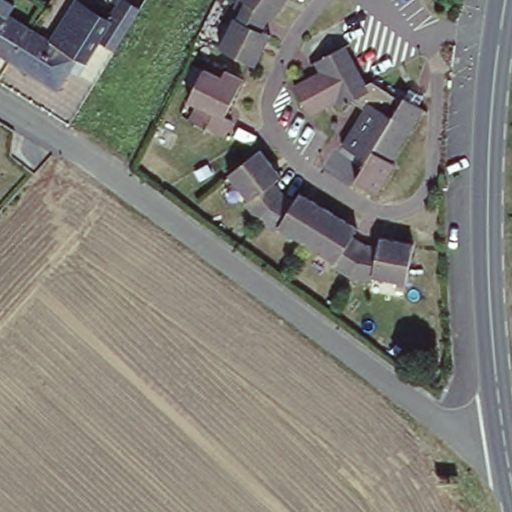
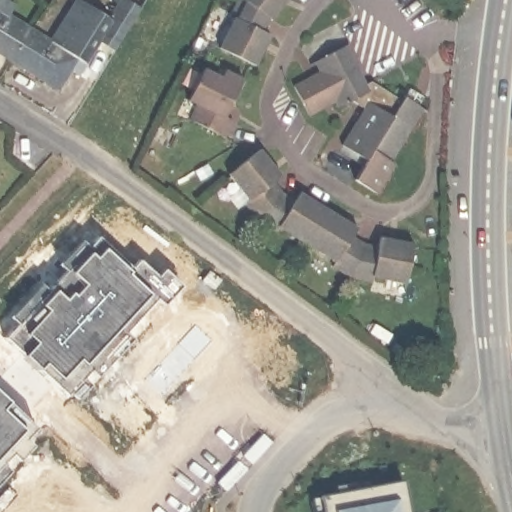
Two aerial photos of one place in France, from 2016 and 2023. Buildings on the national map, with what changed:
unchanged [(53,45),(66,22),(95,40),(105,22),(100,20),(111,0),(124,0),(141,11),(128,32),(119,47),(115,53),(100,44),(78,79),(69,72),(59,89),(15,62),(0,52),(0,0),(5,0),(22,11),(15,22),(32,32),(53,45)]
unchanged [(272,12),(265,29),(270,32),(257,61),(224,45),(237,16),(230,12),(236,0),(290,0),(278,16),(272,12)]
unchanged [(358,82),(363,73),(415,98),(387,157),(392,159),(376,193),(352,182),(364,156),(341,145),(360,104),(350,98),(337,107),(331,97),(306,114),(288,86),(314,71),(310,64),(336,46),(358,82)]
unchanged [(219,77),(222,69),(243,79),(225,116),(237,121),(229,138),(189,119),(195,106),(186,102),(202,69),(219,77)]
unchanged [(231,177),(261,149),(286,176),(277,184),(303,205),(311,196),(362,232),(357,241),(373,251),(388,251),(390,247),(418,257),(407,295),(377,283),(375,287),(356,281),(340,271),(343,265),(286,227),(281,232),(251,209),(257,204),(231,177)]
new [(16,324),(9,317),(40,284),(47,291),(65,272),(57,265),(81,241),(87,246),(97,236),(130,267),(139,259),(157,277),(164,268),(181,285),(162,305),(155,299),(126,332),(132,338),(97,377),(90,370),(82,377),(90,384),(76,398),(69,392),(66,395),(22,355),(4,338),(16,324)]
new [(195,323),(214,341),(161,396),(144,380),(195,323)]
new [(26,439),(34,445),(19,461),(12,453),(3,464),(10,470),(0,481),(0,394),(36,427),(26,439)]
new [(318,498),(403,482),(409,512),(321,512),(318,498)]

